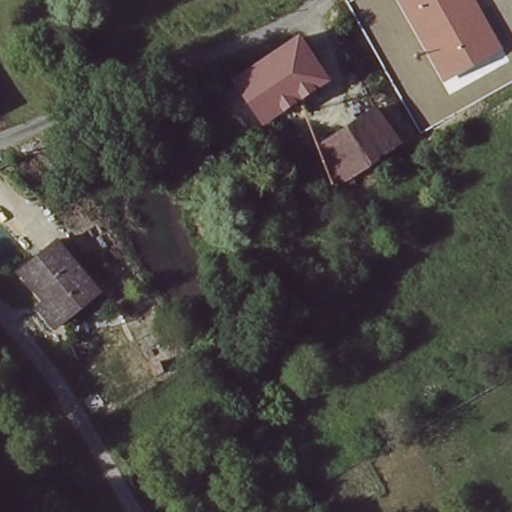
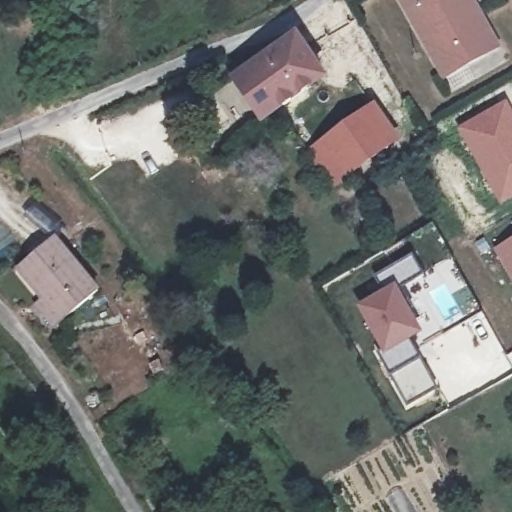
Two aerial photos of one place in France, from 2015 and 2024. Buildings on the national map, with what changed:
unchanged [(444,82),(398,0),(476,0),(504,49),(444,82)]
unchanged [(298,33),(323,71),(261,114),(236,76),(298,33)]
unchanged [(383,104),(403,138),(333,178),(312,144),(383,104)]
new [(507,105),(512,114),(512,198),(504,203),(464,130),(507,105)]
new [(496,250),(512,240),(512,278),(496,250)]
unchanged [(95,294),(58,323),(18,270),(55,241),(95,294)]
new [(406,405),(388,375),(382,365),(376,354),(383,350),(359,309),(383,296),(372,278),(409,257),(419,276),(397,289),(409,309),(403,313),(414,332),(406,338),(412,348),(418,358),(434,388),(406,405)]

